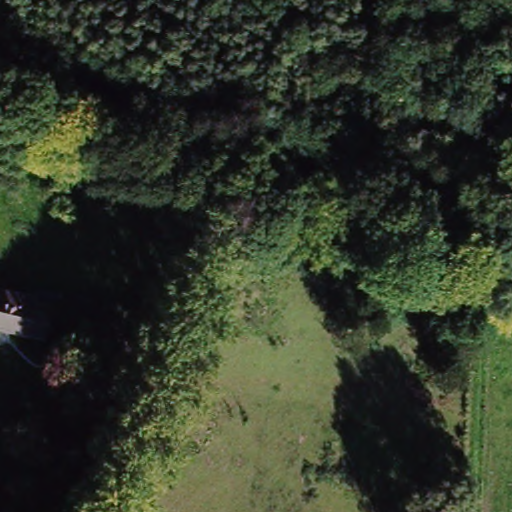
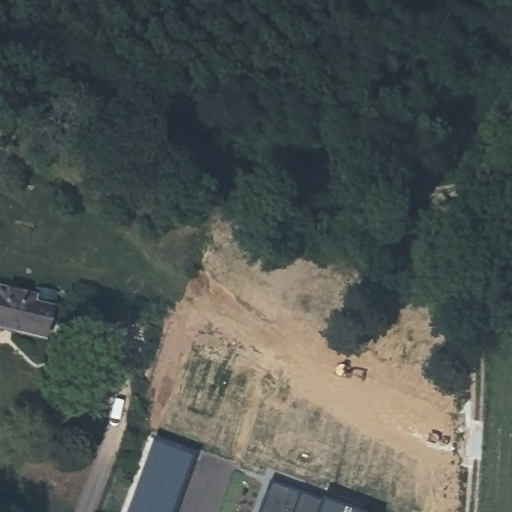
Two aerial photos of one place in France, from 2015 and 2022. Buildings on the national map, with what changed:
unchanged [(19,302),(38,307),(35,339),(0,332),(0,292),(20,296),(19,302)]
new [(193,450),(170,512),(125,512),(152,434),(193,450)]
new [(341,512),(260,512),(270,486),(341,512)]

